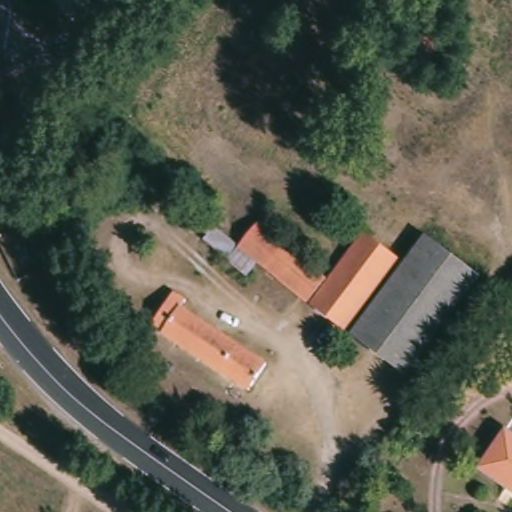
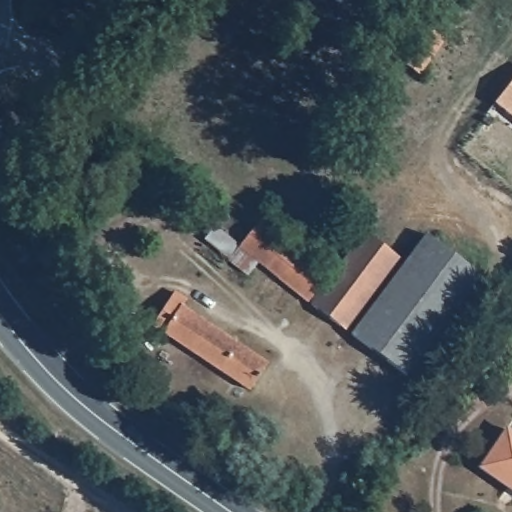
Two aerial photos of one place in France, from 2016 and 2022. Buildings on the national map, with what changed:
unchanged [(442,44),(419,75),(405,66),(429,35),(442,44)]
new [(512,80),(512,117),(494,102),(512,80)]
unchanged [(321,277),(300,303),(252,263),(242,275),(223,260),(199,240),(210,226),(234,245),(238,242),(254,222),(321,277)]
unchanged [(358,232),(392,258),(339,330),(305,306),(324,280),(358,232)]
unchanged [(345,335),(419,235),(474,275),(400,376),(345,335)]
unchanged [(169,293),(180,300),(177,306),(261,363),(243,391),(146,327),(169,293)]
unchanged [(512,439),(512,494),(479,471),(506,435),(512,439)]

